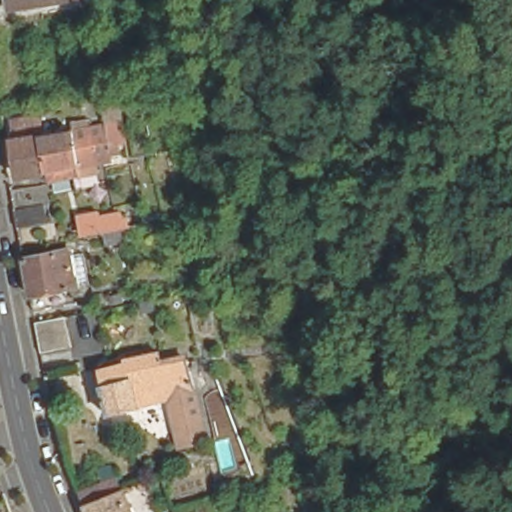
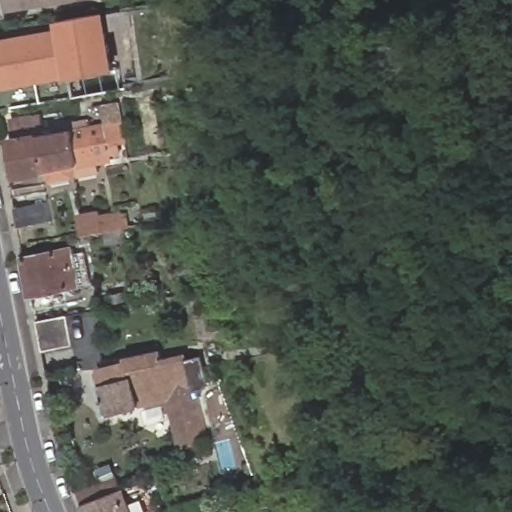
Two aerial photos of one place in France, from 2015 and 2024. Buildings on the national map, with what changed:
unchanged [(9,0),(74,0),(10,8),(9,0)]
new [(72,98),(69,79),(0,90),(0,87),(0,38),(56,28),(55,21),(104,13),(117,91),(72,98)]
unchanged [(105,126),(101,105),(117,101),(121,123),(122,123),(123,131),(106,134),(110,158),(95,161),(96,162),(98,173),(75,177),(51,181),(50,169),(20,175),(14,141),(17,140),(14,122),(31,119),(34,137),(105,126)]
unchanged [(16,213),(15,211),(47,206),(50,222),(19,227),(16,213)]
unchanged [(102,233),(100,234),(99,231),(82,234),(78,217),(98,214),(99,220),(119,216),(122,230),(102,233)]
unchanged [(70,245),(73,264),(77,282),(67,283),(62,285),(64,298),(34,305),(24,253),(70,245)]
unchanged [(69,345),(43,351),(36,321),(63,316),(69,345)]
unchanged [(161,406),(103,419),(93,376),(126,368),(129,376),(181,365),(195,422),(175,427),(167,429),(161,406)]
unchanged [(234,463),(222,468),(212,441),(225,436),(234,463)]
unchanged [(83,505),(78,492),(117,477),(122,490),(131,512),(86,512),(83,505)]

